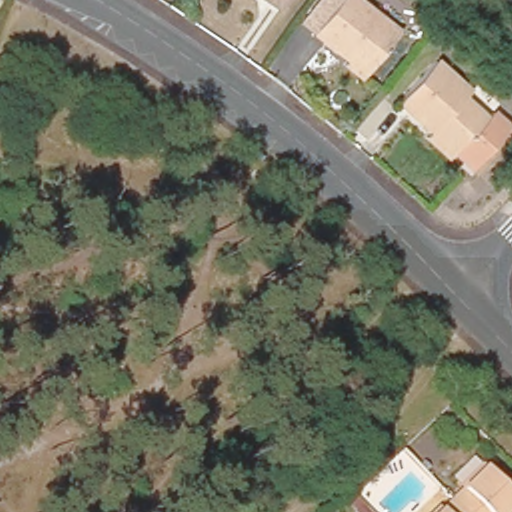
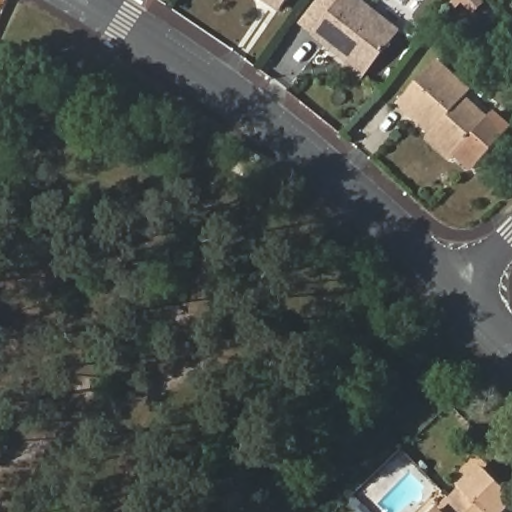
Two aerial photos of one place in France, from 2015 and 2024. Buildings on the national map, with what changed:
unchanged [(279,8),(267,0),(284,0),(279,8)]
unchanged [(339,0),(361,0),(399,31),(364,75),(313,33),(339,0)]
unchanged [(482,2),(472,13),(458,0),(479,0),(482,2)]
unchanged [(424,140),(431,132),(398,103),(435,61),(466,89),(461,95),(487,118),(454,153),(448,161),(424,140)]
unchanged [(512,495),(512,503),(503,512),(465,512),(452,499),(484,467),(512,495)]
unchanged [(439,512),(452,499),(465,512),(439,512)]

